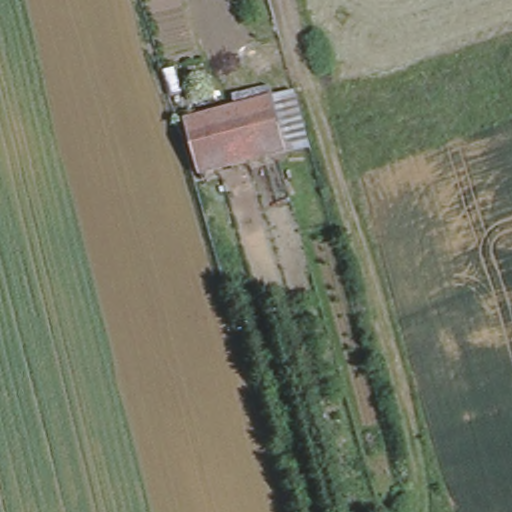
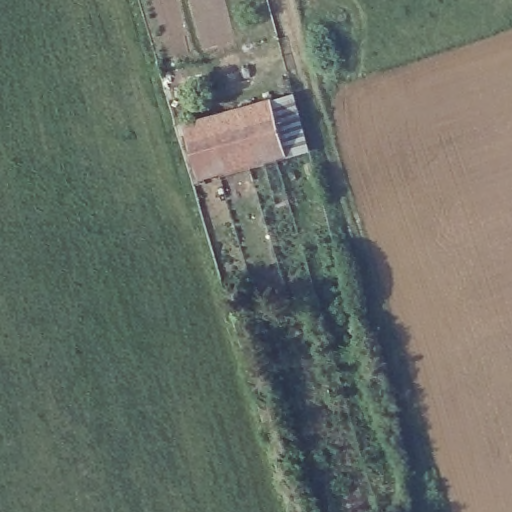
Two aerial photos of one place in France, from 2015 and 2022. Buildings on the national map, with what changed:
unchanged [(272,100),(286,154),(197,176),(183,122),(272,100)]

